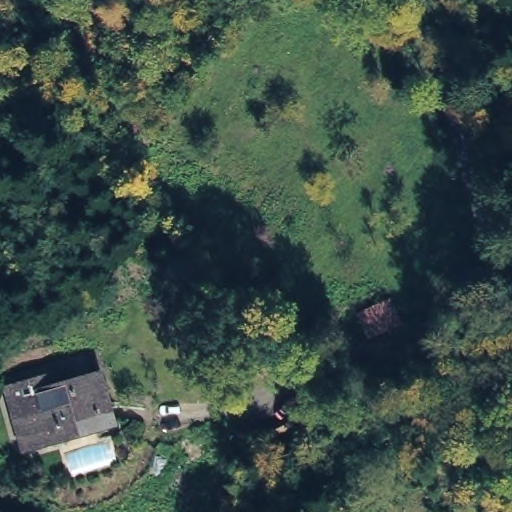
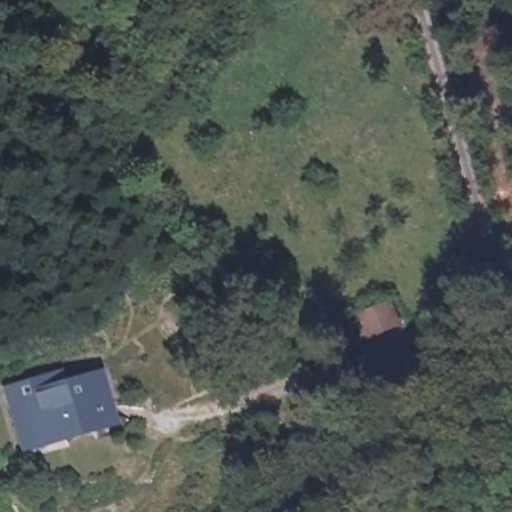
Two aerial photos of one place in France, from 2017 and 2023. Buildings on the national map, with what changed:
unchanged [(384,297),(395,325),(359,334),(350,310),(384,297)]
unchanged [(40,380),(42,385),(90,371),(101,423),(17,450),(3,389),(40,380)]

